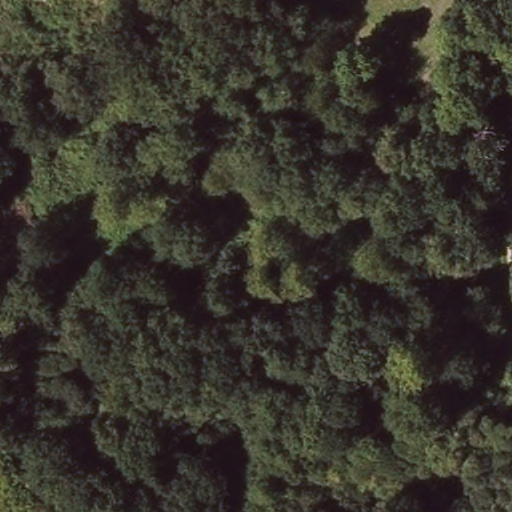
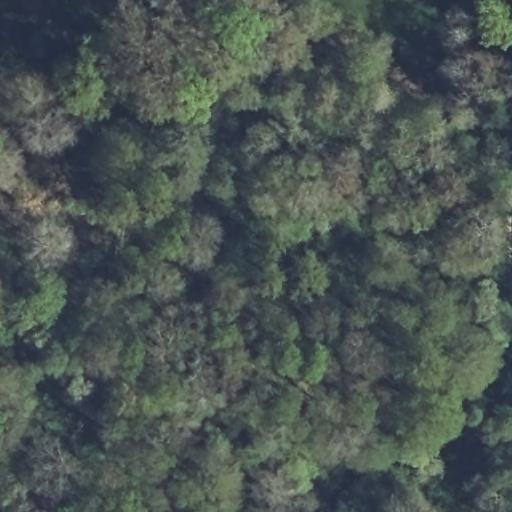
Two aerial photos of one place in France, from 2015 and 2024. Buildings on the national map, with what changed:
[]

